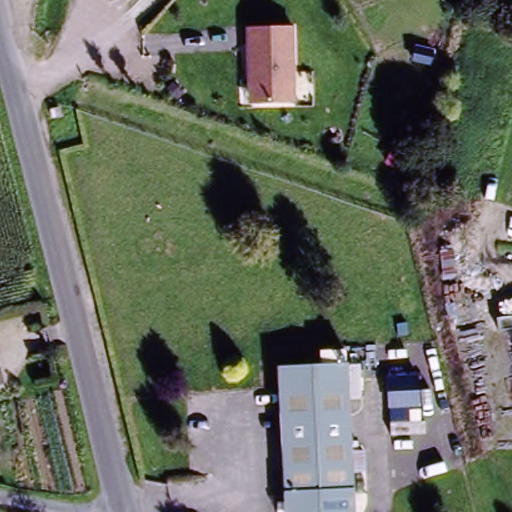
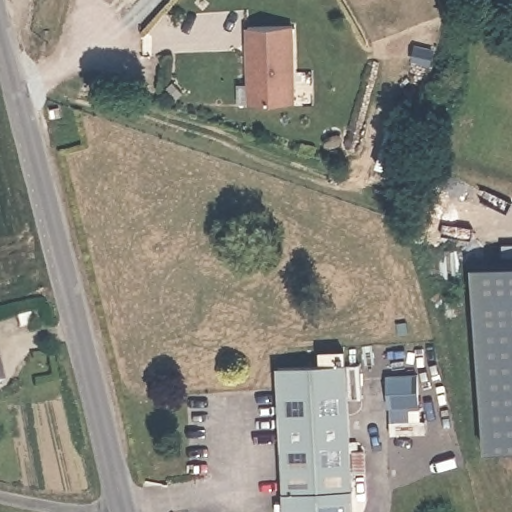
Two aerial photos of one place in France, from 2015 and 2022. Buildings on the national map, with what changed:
unchanged [(292,29),(294,104),(247,103),(245,29),(292,29)]
new [(512,263),(512,449),(486,450),(474,266),(512,263)]
unchanged [(351,512),(283,512),(277,369),(340,363),(351,512)]
new [(419,376),(422,406),(392,408),(390,379),(419,376)]

